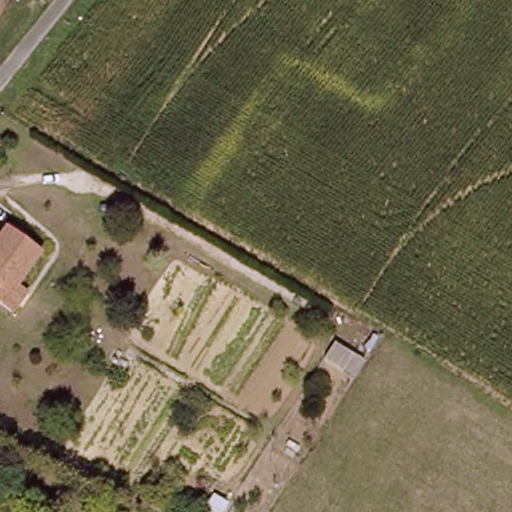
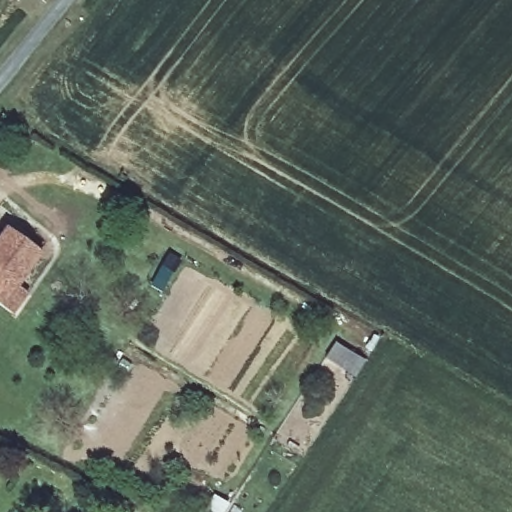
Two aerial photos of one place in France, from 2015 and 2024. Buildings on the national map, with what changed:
unchanged [(5,321),(0,316),(0,240),(6,233),(36,260),(10,295),(19,303),(5,321)]

